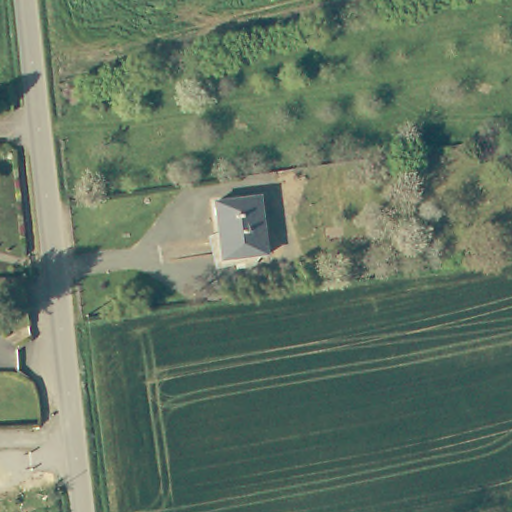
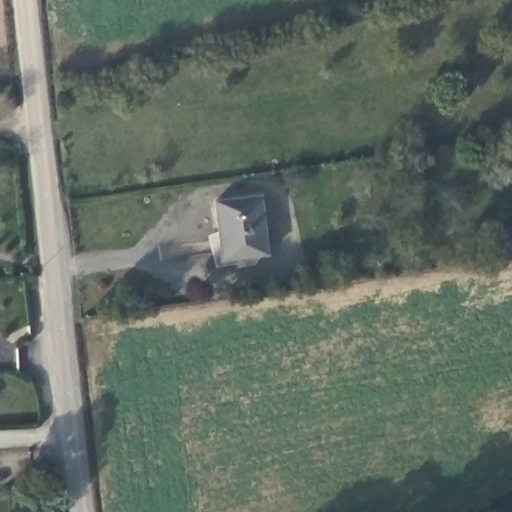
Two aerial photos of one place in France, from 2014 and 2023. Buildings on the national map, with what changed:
unchanged [(505,152),(512,151),(512,184),(510,184),(505,152)]
unchanged [(270,251),(225,257),(219,199),(264,194),(270,251)]

